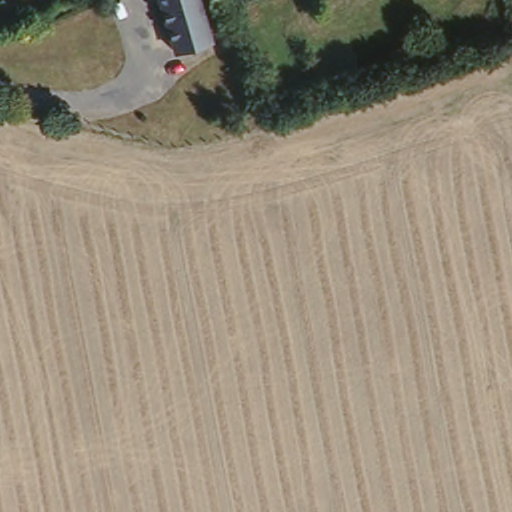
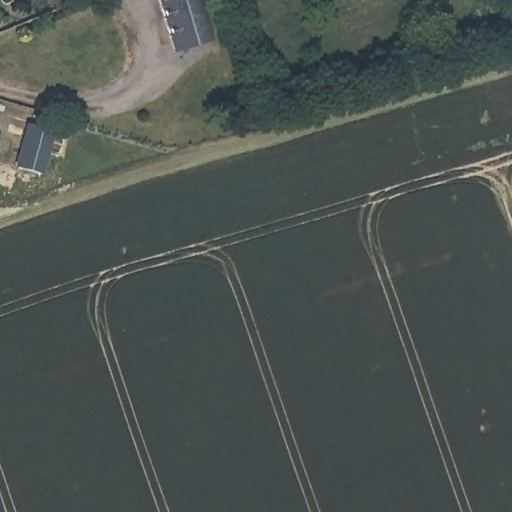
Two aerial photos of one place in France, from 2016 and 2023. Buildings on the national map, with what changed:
unchanged [(209,31),(208,32),(175,41),(161,0),(199,0),(209,31)]
new [(23,124),(54,134),(45,174),(16,166),(23,124)]

